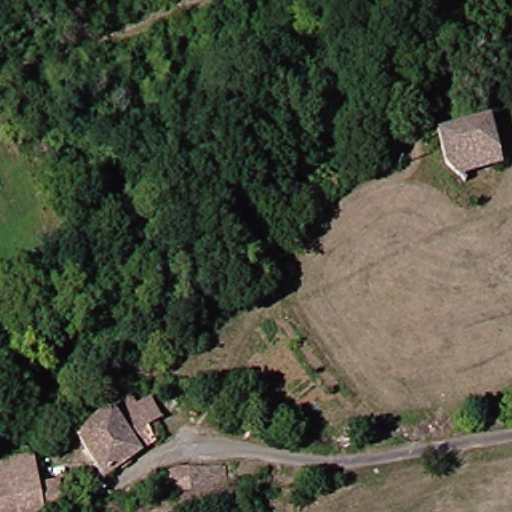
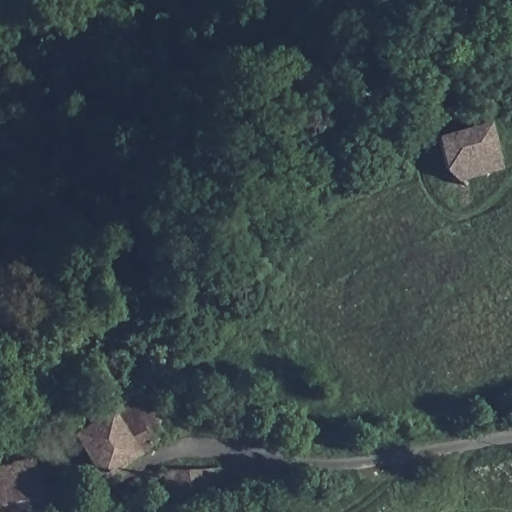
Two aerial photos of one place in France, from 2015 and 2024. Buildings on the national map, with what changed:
unchanged [(470,181),(456,171),(447,136),(438,139),(431,115),(460,109),(465,131),(497,124),(507,156),(511,169),(470,181)]
unchanged [(141,398),(148,409),(160,401),(176,425),(170,430),(175,438),(113,479),(83,436),(141,398)]
unchanged [(0,476),(42,467),(47,492),(62,490),(65,512),(0,512),(0,476)]
unchanged [(221,477),(220,493),(205,492),(205,499),(160,495),(162,472),(221,477)]

